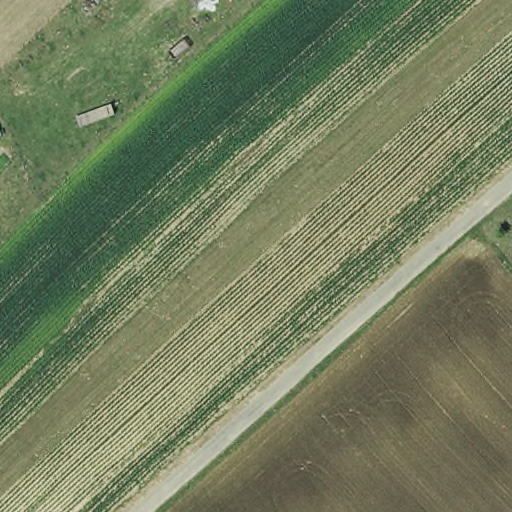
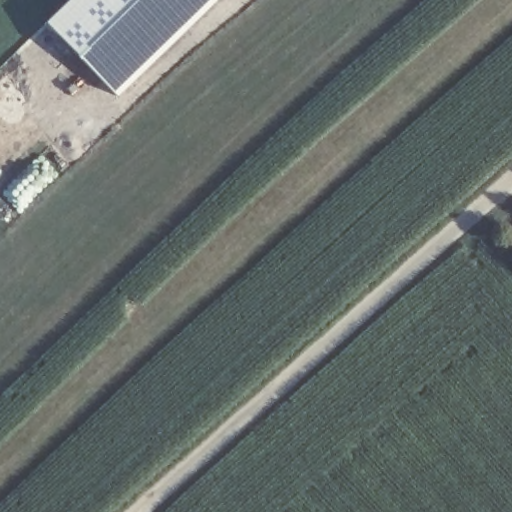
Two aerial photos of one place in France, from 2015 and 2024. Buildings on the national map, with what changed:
new [(103,93),(49,32),(84,0),(201,0),(103,93)]

